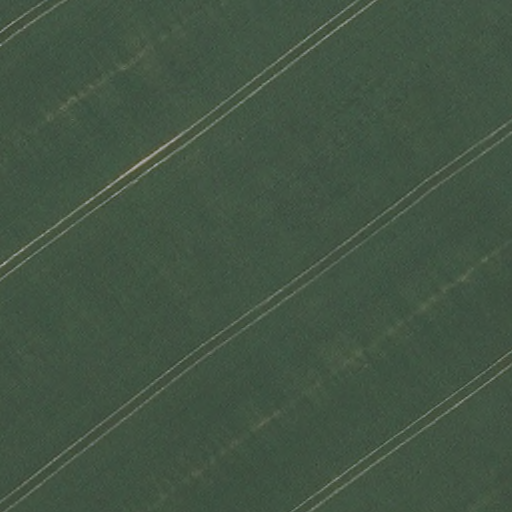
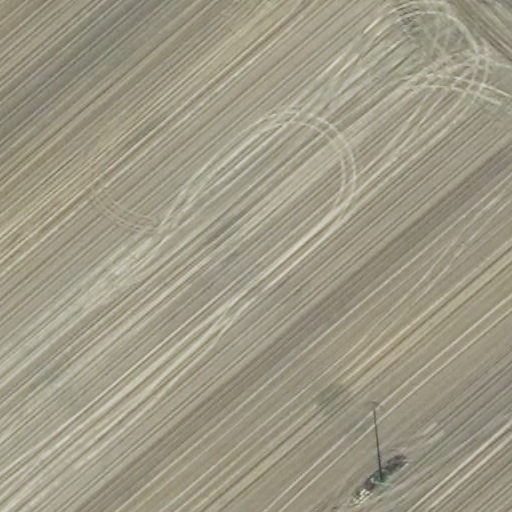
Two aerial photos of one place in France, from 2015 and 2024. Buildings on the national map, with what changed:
[]

